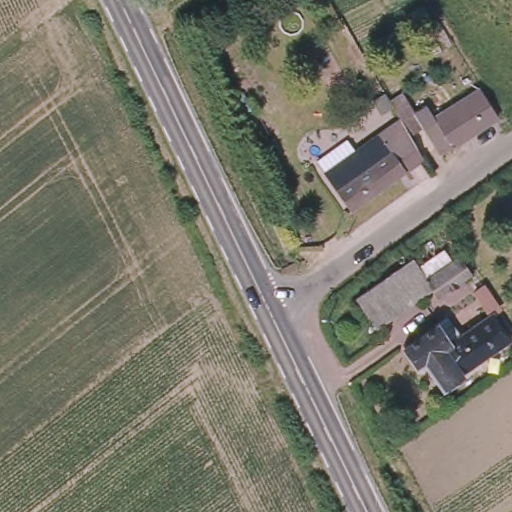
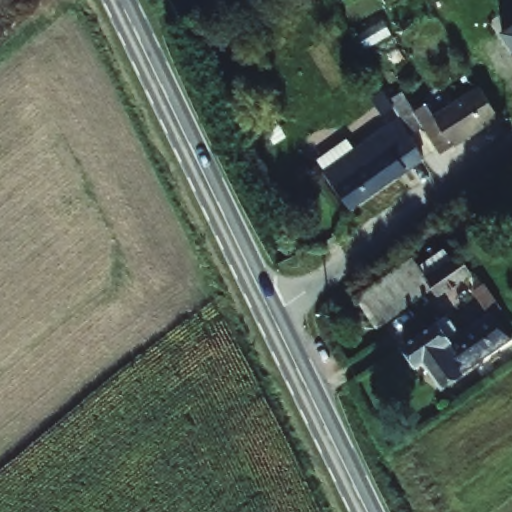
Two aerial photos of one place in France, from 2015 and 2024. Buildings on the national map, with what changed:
new [(512,25),(512,48),(502,32),(512,25)]
unchanged [(494,121),(436,157),(419,129),(404,138),(397,125),(388,111),(375,118),(368,105),(381,98),(387,107),(399,100),(409,116),(421,108),(429,122),(468,99),(458,83),(466,78),(483,106),(483,105),(494,121)]
unchanged [(345,213),(321,179),(311,165),(341,144),(351,157),(397,125),(404,138),(419,162),(345,213)]
unchanged [(423,307),(418,298),(361,337),(341,308),(398,269),(411,288),(444,265),(457,284),(423,307)]
unchanged [(489,317),(508,344),(438,392),(419,366),(413,371),(399,351),(431,330),(430,329),(441,321),(454,340),(489,317)]

